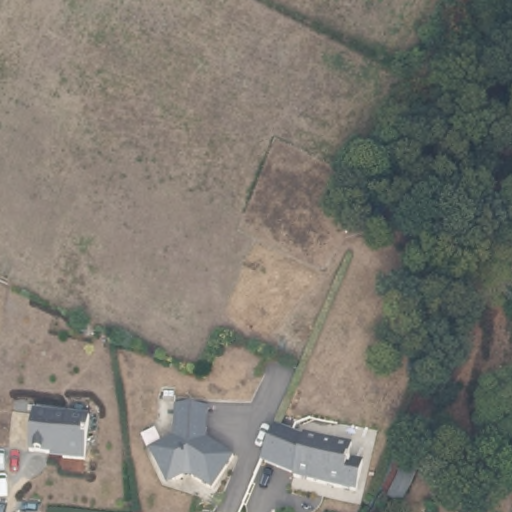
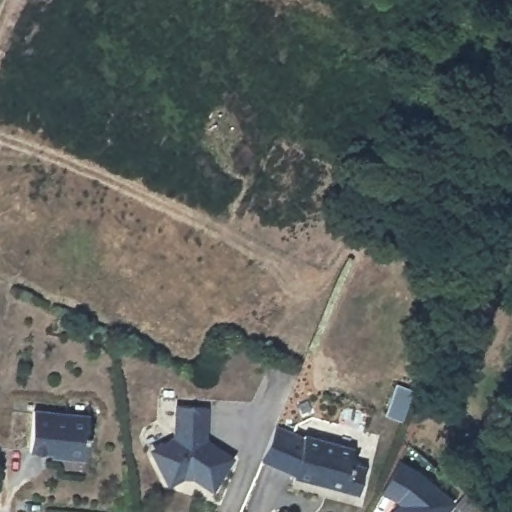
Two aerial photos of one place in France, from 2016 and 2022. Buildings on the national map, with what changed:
unchanged [(155,456),(156,445),(172,436),(173,401),(186,402),(209,403),(208,436),(235,455),(214,487),(193,475),(193,467),(184,467),(184,474),(176,478),(171,478),(166,476),(162,468),(155,456)]
unchanged [(87,409),(84,453),(62,452),(62,447),(26,443),(30,403),(87,409)]
unchanged [(367,462),(360,488),(297,472),(298,470),(264,456),(278,422),(306,433),(307,431),(356,443),(352,457),(367,462)]
new [(394,499),(380,491),(397,460),(413,466),(452,501),(442,512),(389,512),(397,502),(394,499)]

